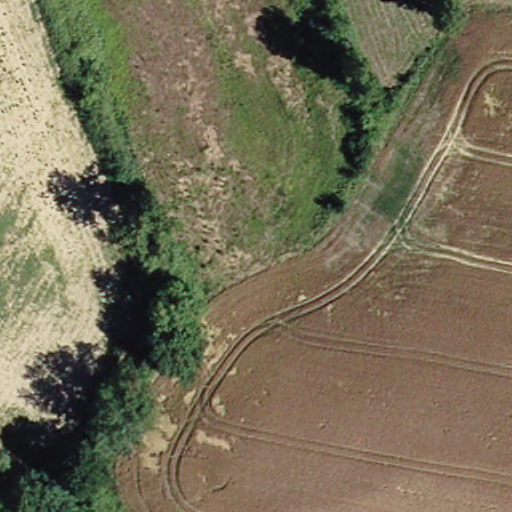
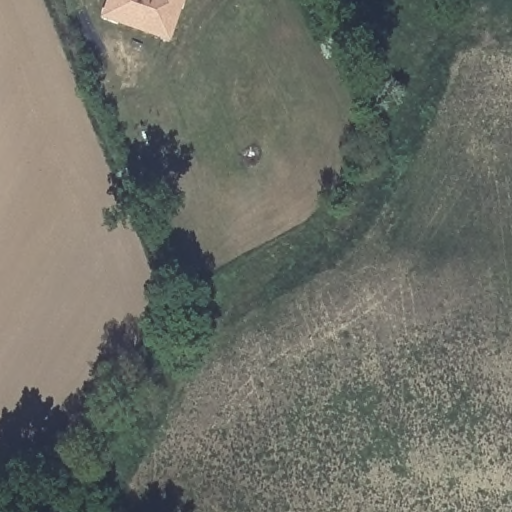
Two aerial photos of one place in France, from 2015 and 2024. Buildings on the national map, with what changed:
new [(112,0),(189,0),(173,42),(106,17),(112,0)]

